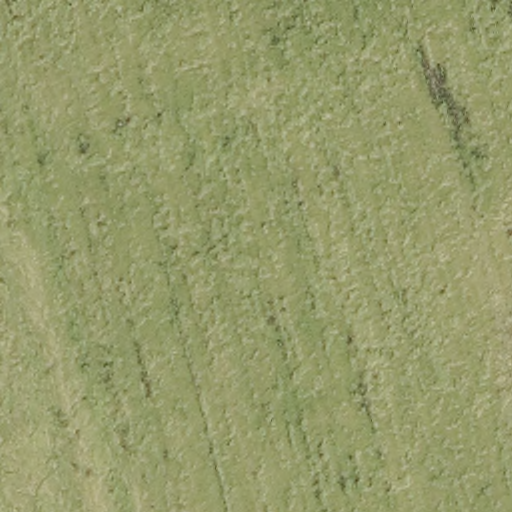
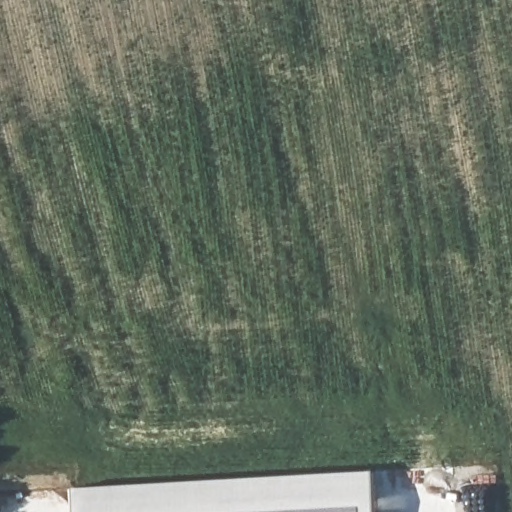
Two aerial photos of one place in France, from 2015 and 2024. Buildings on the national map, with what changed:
new [(372,469),(374,512),(72,512),(70,485),(372,469)]

